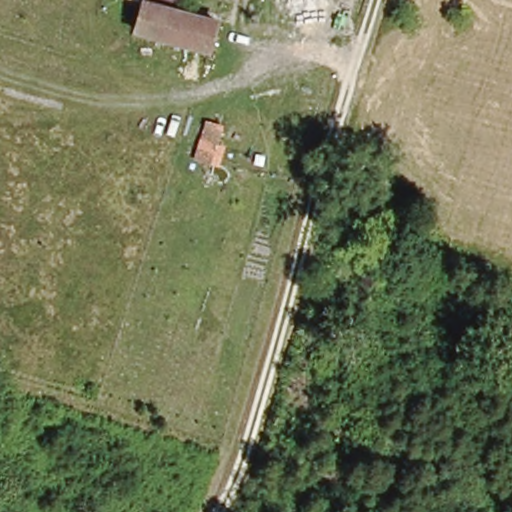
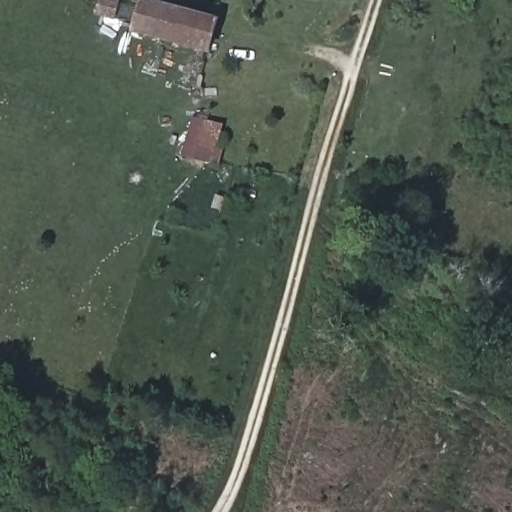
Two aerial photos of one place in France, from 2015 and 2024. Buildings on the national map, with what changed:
unchanged [(141,31),(149,0),(159,0),(219,16),(211,49),(141,31)]
unchanged [(223,128),(216,162),(196,157),(204,122),(223,128)]

